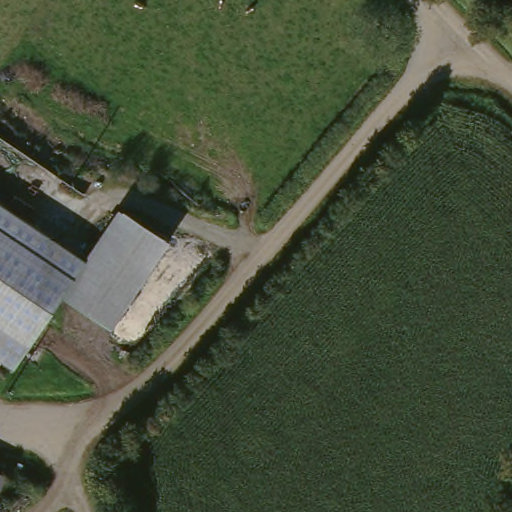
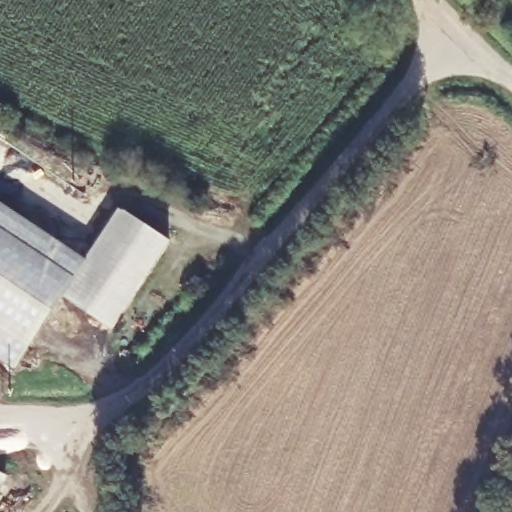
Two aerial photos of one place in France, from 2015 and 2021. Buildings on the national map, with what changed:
unchanged [(86,263),(120,212),(167,244),(109,330),(62,298),(14,372),(12,370),(0,362),(0,206),(86,263)]
unchanged [(5,476),(0,486),(0,474),(5,476)]

